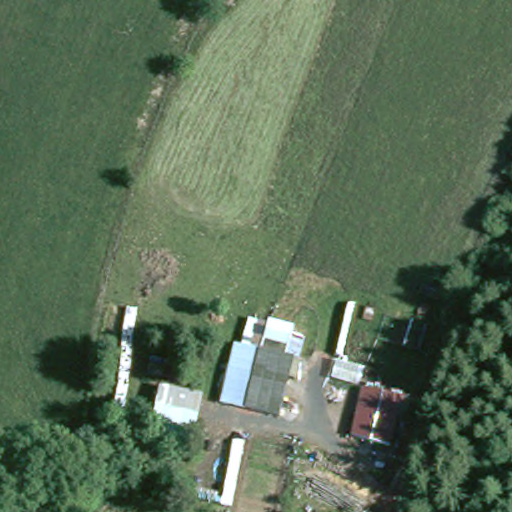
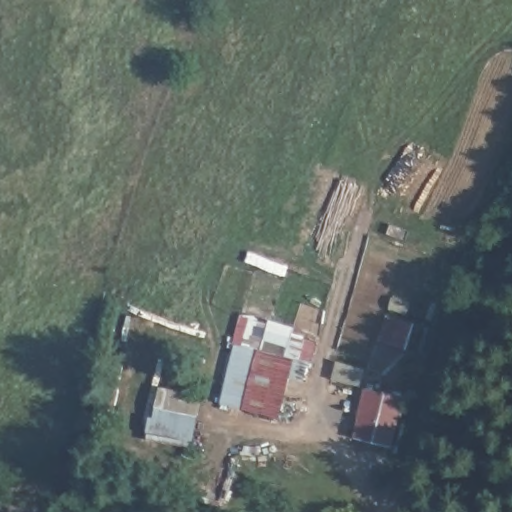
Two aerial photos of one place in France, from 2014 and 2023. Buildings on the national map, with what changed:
unchanged [(297,356),(284,416),(218,402),(234,340),(297,356)]
unchanged [(409,395),(393,447),(349,438),(364,385),(409,395)]

